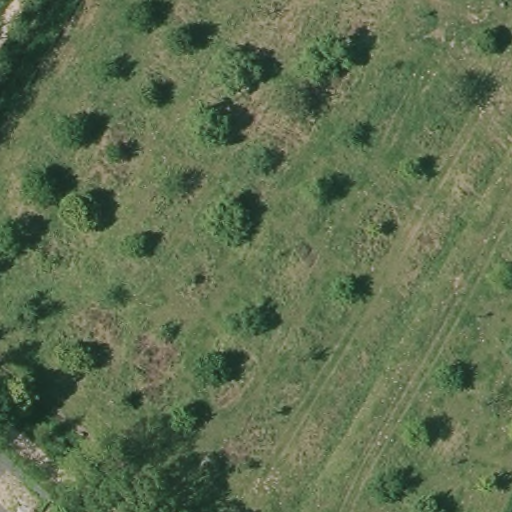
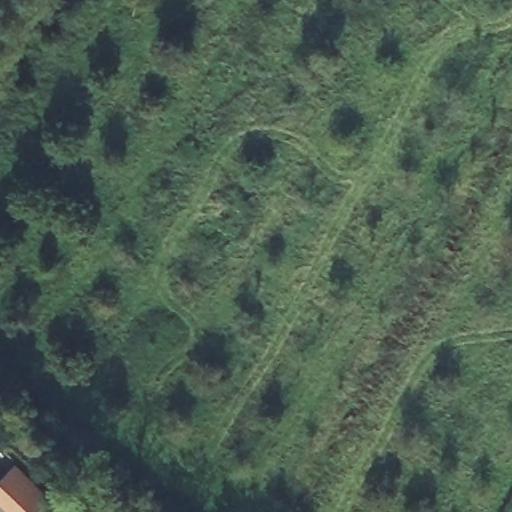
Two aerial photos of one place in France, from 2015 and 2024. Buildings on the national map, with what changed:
new [(36,512),(9,512),(0,503),(0,481),(16,464),(51,496),(36,512)]

